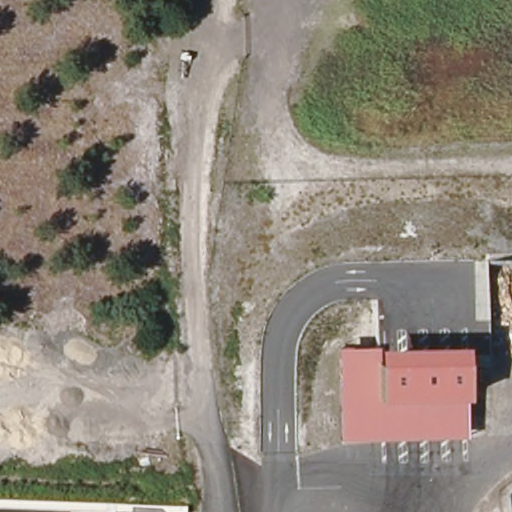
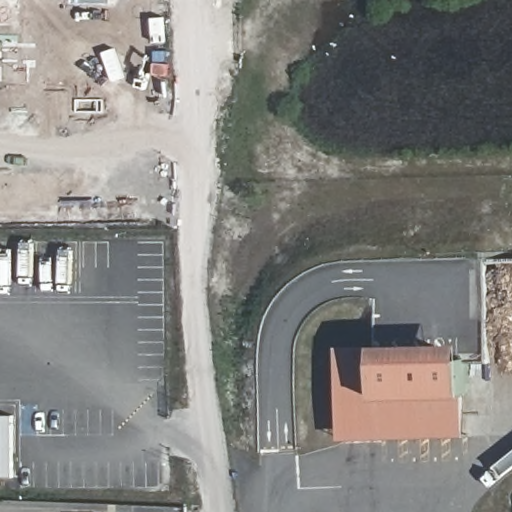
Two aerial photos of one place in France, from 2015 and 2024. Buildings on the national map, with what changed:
unchanged [(468,437),(342,441),(338,347),(380,345),(466,342),(469,395),(468,437)]
new [(16,417),(15,480),(0,480),(0,417),(16,417)]

